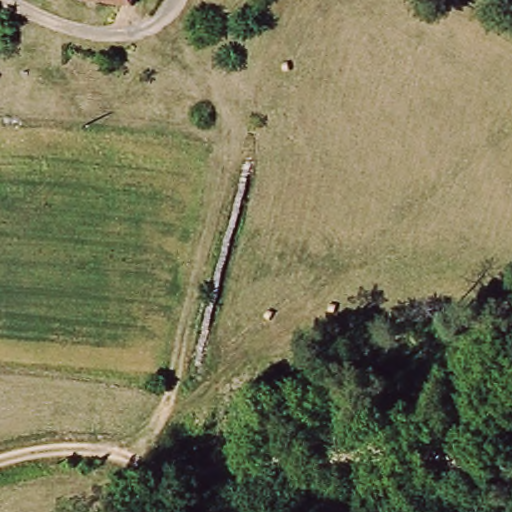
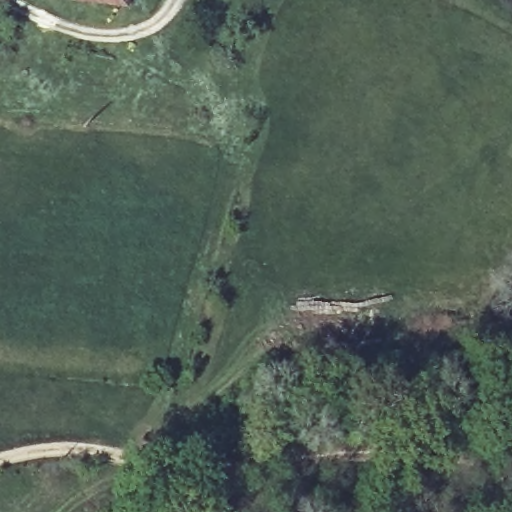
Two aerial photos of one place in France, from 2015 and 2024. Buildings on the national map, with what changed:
unchanged [(90,0),(138,0),(137,7),(90,0)]

